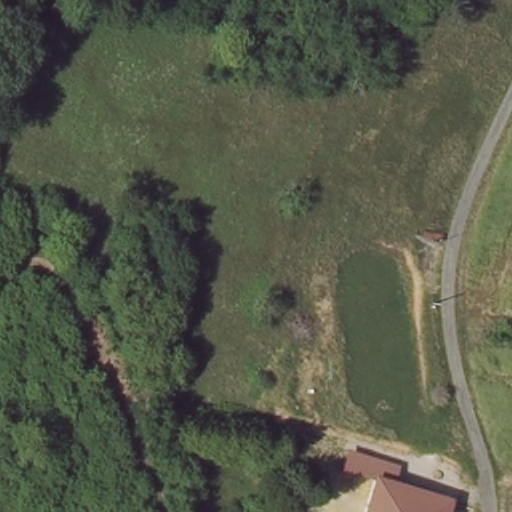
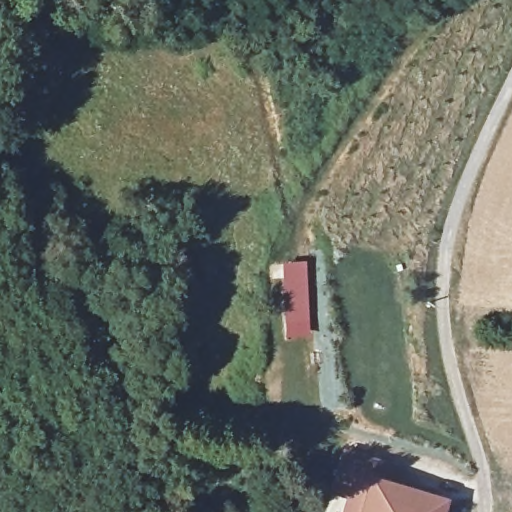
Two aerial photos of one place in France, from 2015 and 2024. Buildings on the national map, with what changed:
new [(308,335),(284,335),(280,261),(303,262),(308,335)]
unchanged [(366,510),(373,482),(348,476),(340,473),(345,456),(354,458),(394,469),(389,485),(420,492),(414,512),(365,512),(366,510)]
unchanged [(443,498),(440,512),(414,512),(420,492),(443,498)]

